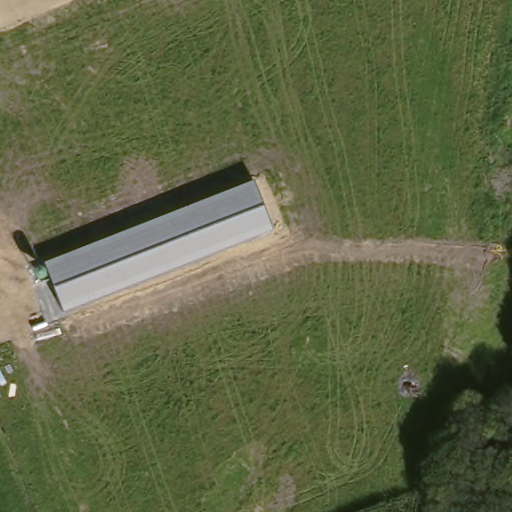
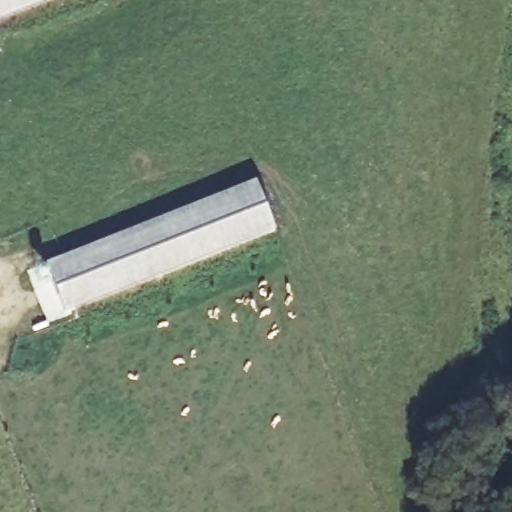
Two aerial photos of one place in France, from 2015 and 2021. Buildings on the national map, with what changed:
new [(0,0),(37,0),(0,13),(0,0)]
unchanged [(63,313),(45,265),(253,185),(273,233),(63,313)]

